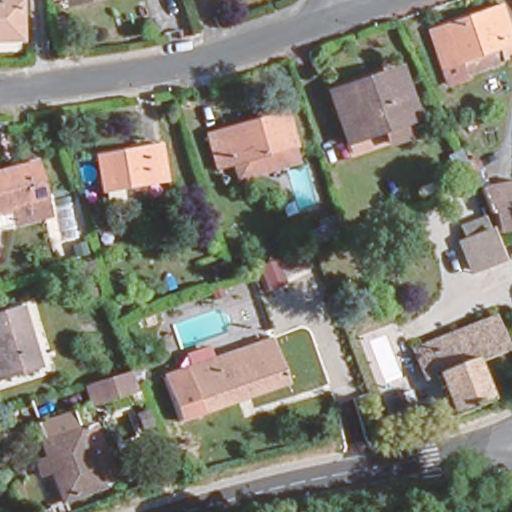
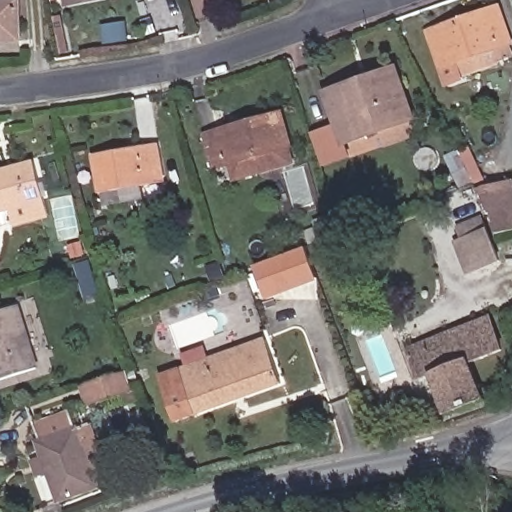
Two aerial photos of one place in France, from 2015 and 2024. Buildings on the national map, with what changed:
unchanged [(16,37),(0,38),(0,0),(14,0),(16,37)]
unchanged [(64,5),(62,0),(86,0),(64,5)]
unchanged [(464,75),(465,79),(447,85),(427,22),(491,0),(507,0),(512,16),(512,36),(457,55),(464,75)]
unchanged [(512,36),(512,59),(464,75),(457,55),(512,36)]
unchanged [(385,145),(378,127),(346,137),(330,86),(370,74),(396,65),(399,73),(413,116),(419,134),(385,145)]
unchanged [(243,173),(237,157),(225,162),(215,127),(231,121),(234,129),(267,117),(264,111),(284,104),(300,156),(243,173)]
unchanged [(106,194),(98,157),(159,143),(167,181),(106,194)]
unchanged [(470,143),(477,156),(480,154),(495,177),(485,183),(463,147),(470,143)]
unchanged [(36,151),(51,207),(19,217),(0,221),(0,161),(36,151)]
unchanged [(500,255),(474,269),(460,228),(483,216),(475,189),(485,183),(507,174),(512,190),(512,228),(495,233),(500,255)]
new [(268,302),(256,267),(307,248),(320,282),(268,302)]
unchanged [(1,373),(0,370),(0,306),(17,299),(39,360),(1,373)]
unchanged [(418,385),(409,355),(405,342),(421,336),(488,313),(492,326),(503,356),(473,366),(483,400),(446,412),(436,379),(418,385)]
unchanged [(201,414),(182,366),(267,331),(285,382),(201,414)]
unchanged [(84,407),(75,381),(130,363),(137,390),(84,407)]
unchanged [(132,417),(151,409),(157,428),(139,435),(132,417)]
unchanged [(36,442),(42,440),(37,424),(72,412),(79,427),(83,425),(100,483),(53,498),(36,442)]

